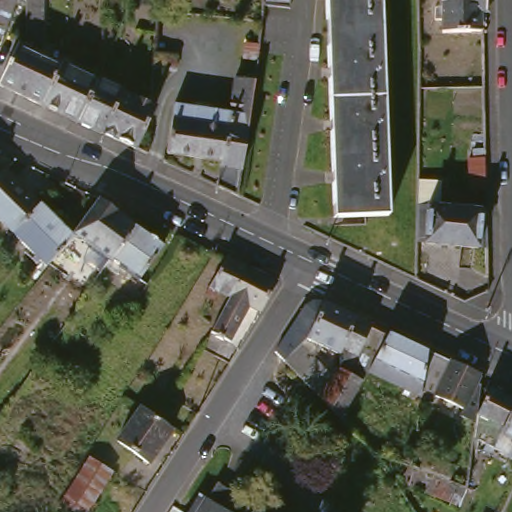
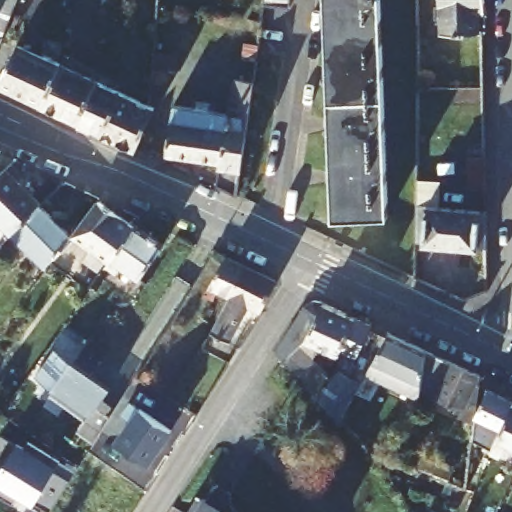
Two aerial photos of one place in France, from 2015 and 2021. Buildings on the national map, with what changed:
unchanged [(3,47),(0,46),(0,6),(3,0),(21,0),(3,47)]
unchanged [(31,0),(47,0),(47,9),(31,2),(31,0)]
unchanged [(293,8),(268,7),(269,0),(295,0),(293,8)]
unchanged [(329,0),(385,0),(391,215),(335,216),(329,0)]
unchanged [(483,29),(447,30),(445,0),(482,0),(483,29)]
unchanged [(2,86),(21,45),(29,49),(31,2),(47,9),(45,56),(65,66),(46,107),(2,86)]
unchanged [(170,56),(168,70),(151,68),(152,54),(170,56)]
unchanged [(46,107),(65,66),(99,82),(81,123),(46,107)]
unchanged [(177,108),(232,116),(237,80),(258,82),(242,198),(221,188),(225,163),(170,155),(177,108)]
unchanged [(81,123),(99,82),(125,94),(106,135),(81,123)]
unchanged [(125,94),(153,108),(159,110),(140,150),(106,135),(125,94)]
unchanged [(473,169),(484,168),(485,191),(472,191),(473,169)]
unchanged [(19,234),(0,216),(0,180),(3,176),(10,170),(47,205),(46,206),(19,234)]
unchanged [(0,174),(3,176),(0,180),(0,174)]
unchanged [(79,235),(102,201),(139,227),(137,229),(115,261),(79,235)]
unchanged [(491,246),(437,240),(429,239),(430,202),(440,203),(493,208),(491,246)]
unchanged [(79,238),(52,266),(19,234),(46,206),(47,205),(77,236),(79,238)]
unchanged [(137,229),(139,227),(140,224),(169,245),(145,280),(126,267),(121,276),(109,269),(110,267),(115,261),(137,229)]
unchanged [(265,313),(252,307),(234,344),(218,336),(235,299),(221,292),(217,300),(212,297),(210,295),(228,257),(251,268),(281,282),(265,313)]
unchanged [(125,294),(135,301),(124,318),(113,311),(125,294)]
unchanged [(317,331),(315,330),(311,339),(305,345),(288,362),(277,351),(308,303),(316,300),(328,305),(317,331)]
unchanged [(342,355),(311,339),(315,330),(317,331),(328,305),(337,308),(360,318),(342,355)]
unchanged [(360,318),(392,333),(359,394),(345,421),(322,398),(340,381),(347,374),(342,355),(360,318)]
unchanged [(387,380),(376,401),(359,394),(392,333),(430,351),(423,398),(387,380)]
unchanged [(289,363),(288,362),(305,345),(340,381),(322,398),(289,363)]
new [(110,389),(97,408),(110,417),(94,442),(77,431),(86,420),(51,395),(52,390),(36,376),(55,350),(110,389)]
unchanged [(452,362),(486,378),(482,411),(481,420),(480,424),(463,417),(467,410),(438,396),(437,402),(431,400),(428,409),(422,408),(423,398),(430,351),(452,362)]
unchanged [(498,424),(492,439),(478,435),(480,424),(481,420),(482,411),(493,388),(512,397),(512,418),(507,428),(498,424)]
unchanged [(148,408),(169,422),(181,431),(158,463),(126,441),(148,408)]
unchanged [(507,454),(498,450),(507,428),(512,418),(512,443),(507,454)]
new [(0,459),(0,436),(1,435),(9,440),(12,436),(27,446),(30,442),(60,462),(53,473),(68,481),(49,512),(47,512),(35,502),(33,506),(15,495),(10,504),(0,497),(0,460),(1,459),(0,459)]
unchanged [(476,486),(465,512),(405,481),(415,458),(476,486)]
unchanged [(119,477),(97,512),(79,512),(68,504),(96,462),(119,477)]
unchanged [(212,500),(221,482),(237,492),(237,498),(237,504),(241,512),(199,512),(207,498),(212,500)]

